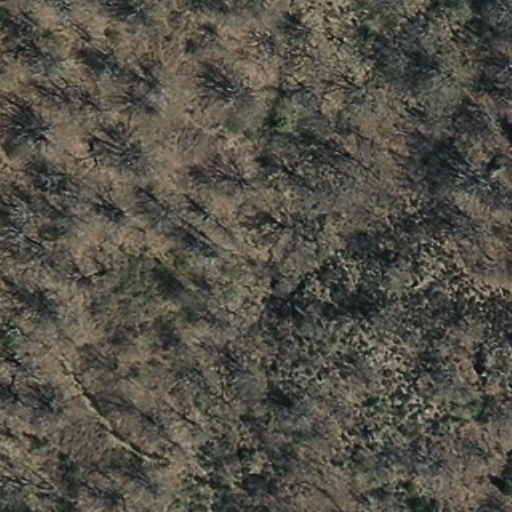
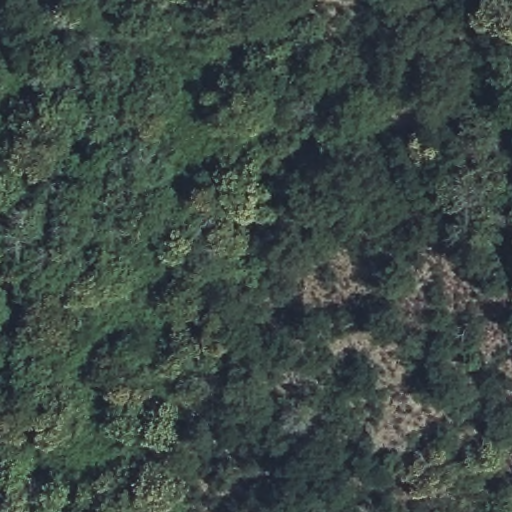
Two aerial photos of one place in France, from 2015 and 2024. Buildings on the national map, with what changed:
[]

